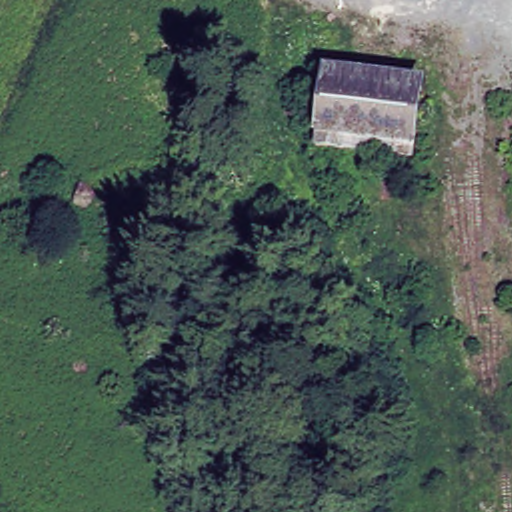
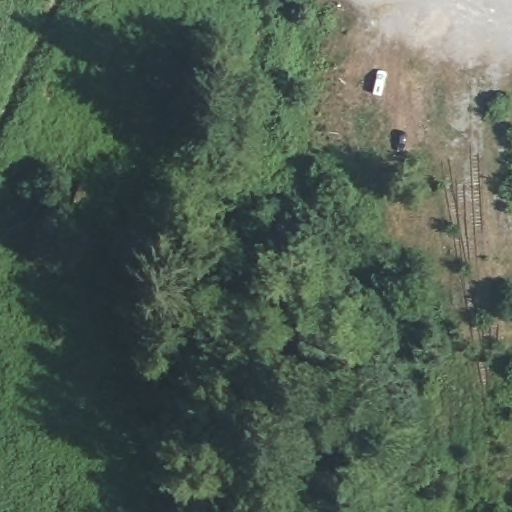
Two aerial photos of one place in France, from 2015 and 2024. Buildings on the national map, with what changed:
demolished [(417,66),(414,85),(429,86),(411,150),(318,135),(326,53),(417,66)]

